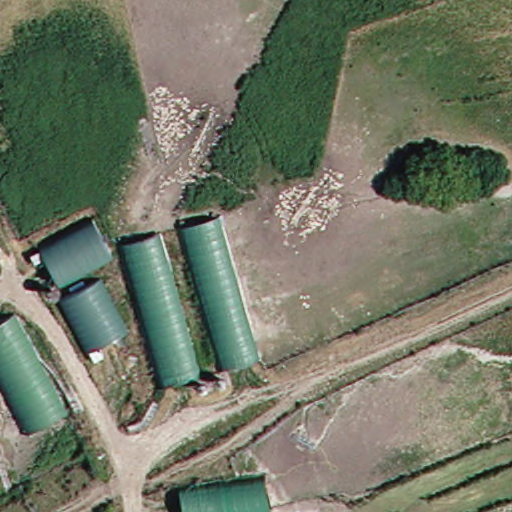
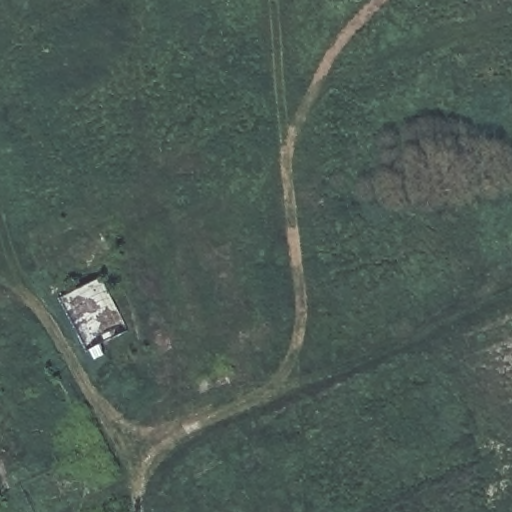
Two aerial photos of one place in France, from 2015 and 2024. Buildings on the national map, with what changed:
demolished [(218,222),(261,362),(170,385),(123,248),(218,222)]
new [(83,355),(58,300),(101,278),(130,333),(83,355)]
demolished [(34,434),(0,373),(0,327),(18,319),(71,416),(34,434)]
demolished [(184,512),(180,488),(264,477),(272,512),(184,512)]

